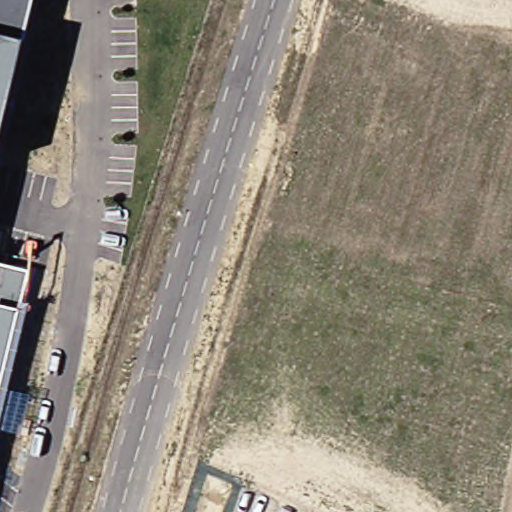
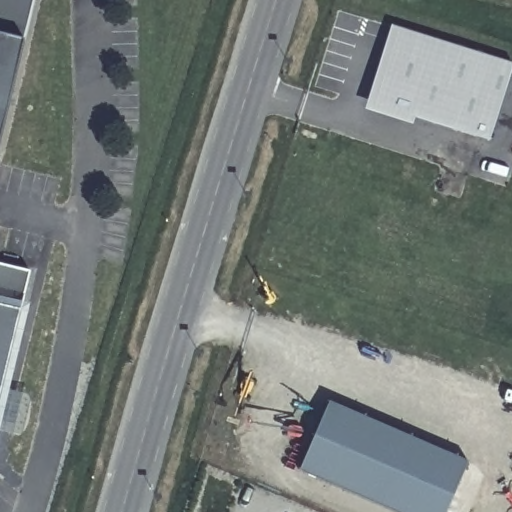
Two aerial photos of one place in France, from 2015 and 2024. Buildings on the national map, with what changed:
unchanged [(25,43),(0,146),(0,0),(36,0),(25,43)]
new [(512,64),(512,71),(490,142),(416,119),(413,125),(365,110),(392,26),(512,64)]
unchanged [(20,309),(0,393),(0,267),(29,274),(20,309)]
new [(472,458),(449,512),(406,512),(302,467),(332,398),(472,458)]

